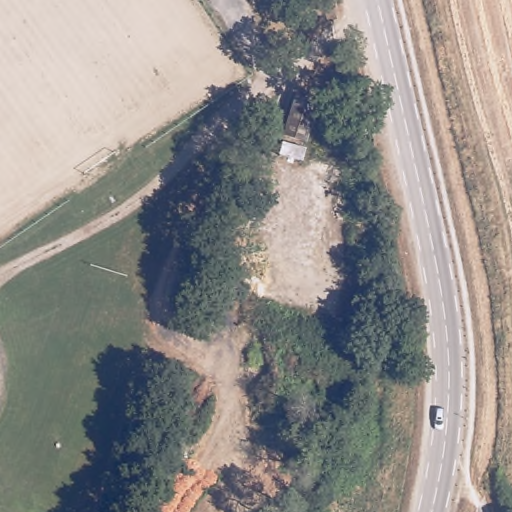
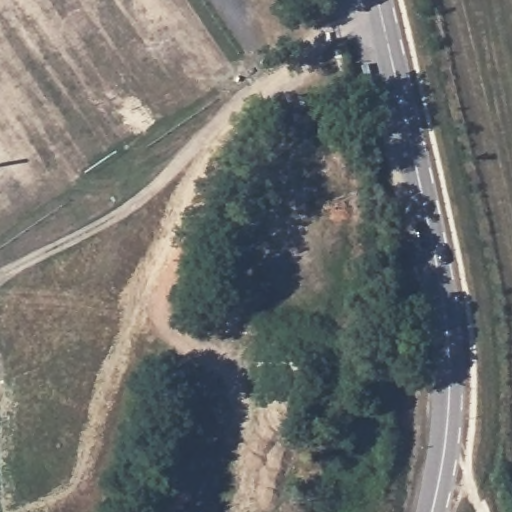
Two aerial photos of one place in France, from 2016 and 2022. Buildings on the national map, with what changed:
unchanged [(296,98),(317,104),(305,142),(285,136),(296,98)]

